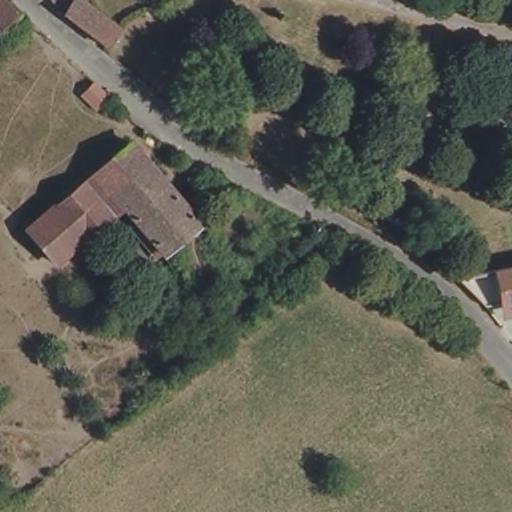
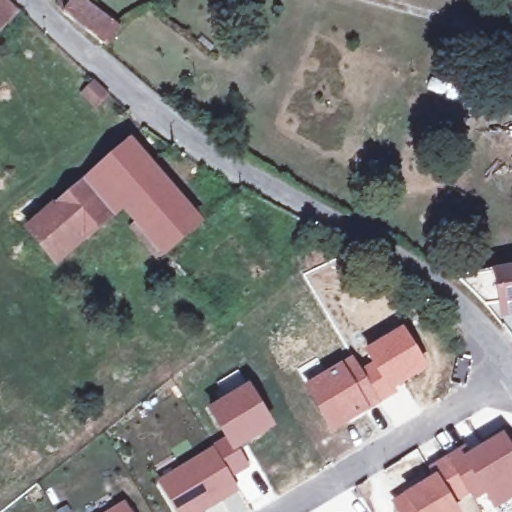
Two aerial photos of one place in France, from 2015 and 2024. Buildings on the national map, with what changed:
unchanged [(2,0),(16,12),(0,29),(0,0),(2,0)]
unchanged [(74,0),(93,0),(120,27),(99,50),(62,11),(74,0)]
unchanged [(94,104),(82,91),(93,81),(106,93),(94,104)]
unchanged [(133,222),(141,215),(126,198),(57,254),(28,220),(128,135),(199,217),(165,245),(157,252),(133,222)]
unchanged [(488,277),(512,273),(512,311),(493,314),(463,282),(488,277)]
new [(352,354),(360,367),(369,362),(362,350),(403,325),(429,367),(395,389),(398,393),(331,432),(303,383),(352,354)]
new [(208,407),(247,380),(277,426),(240,449),(250,466),(232,477),(239,491),(202,512),(175,512),(156,480),(212,445),(224,437),(208,407)]
new [(466,452),(503,430),(512,445),(512,499),(494,510),(484,495),(473,501),(470,496),(457,505),(436,471),(431,465),(462,446),(466,452)]
new [(436,471),(457,505),(461,512),(395,512),(389,501),(436,471)]
new [(124,500),(131,512),(102,512),(124,500)]

